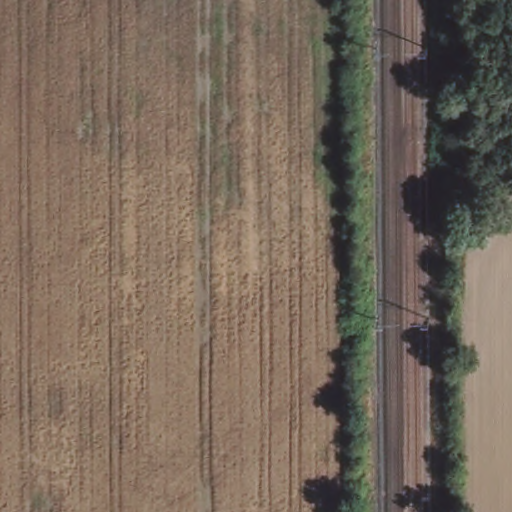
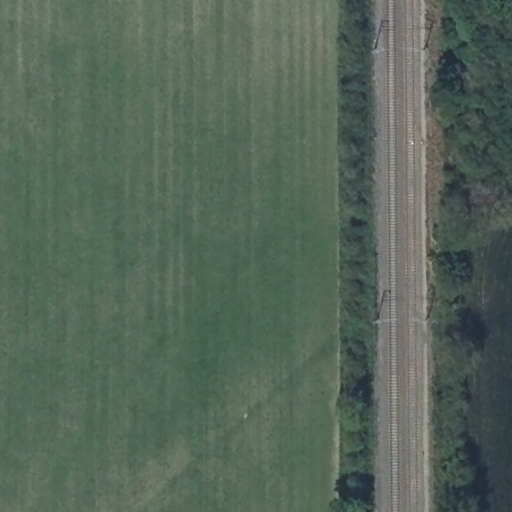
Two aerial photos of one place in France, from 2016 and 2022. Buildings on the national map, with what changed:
[]

